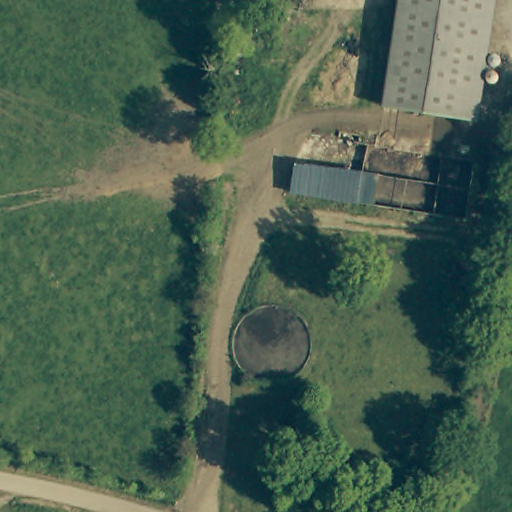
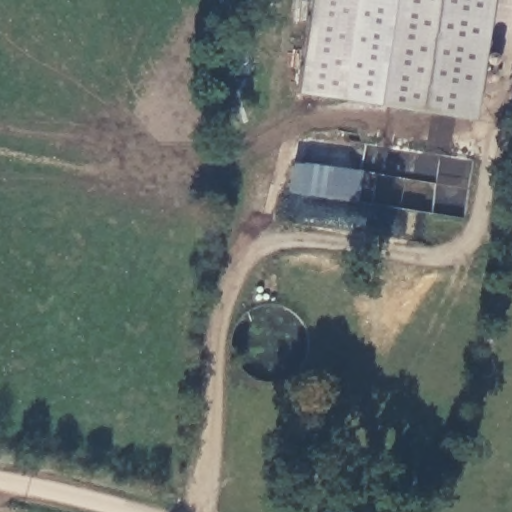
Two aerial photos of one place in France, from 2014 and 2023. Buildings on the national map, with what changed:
new [(393,0),(376,103),(297,92),(312,0),(393,0)]
unchanged [(375,110),(393,0),(418,0),(399,114),(375,110)]
unchanged [(450,122),(399,114),(418,0),(461,0),(472,0),(492,0),(491,3),(471,125),(450,122)]
new [(293,162),(364,170),(359,202),(288,192),(293,162)]

